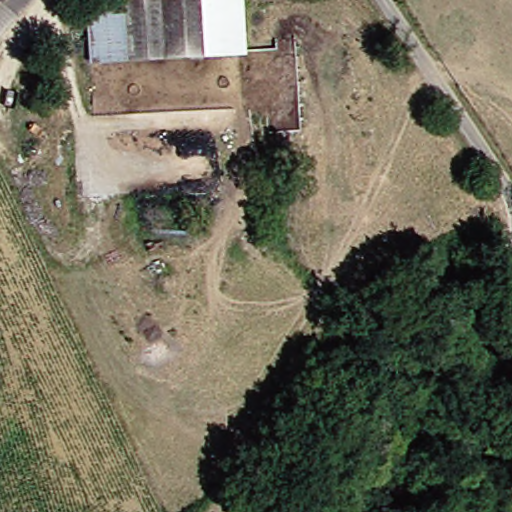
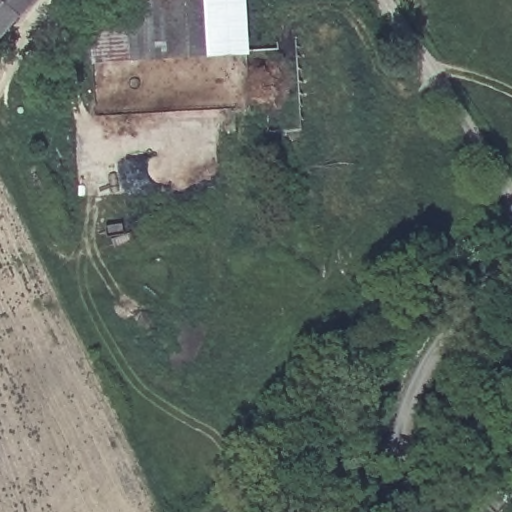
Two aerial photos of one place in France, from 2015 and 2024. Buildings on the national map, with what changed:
unchanged [(0,35),(0,0),(30,0),(0,35)]
unchanged [(251,54),(99,58),(99,8),(125,9),(124,0),(248,0),(251,54)]

